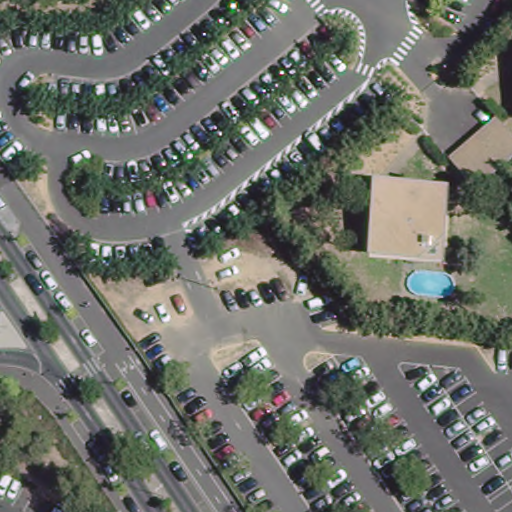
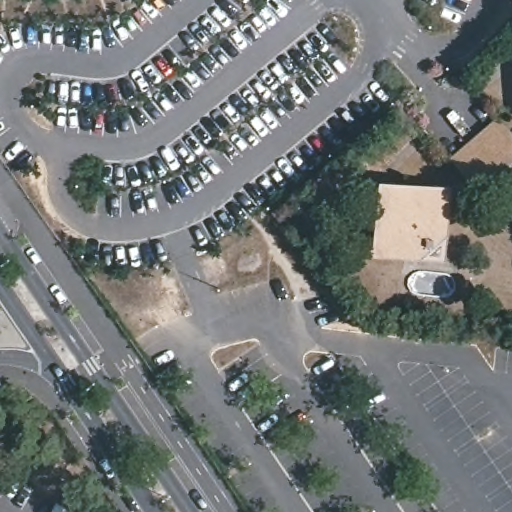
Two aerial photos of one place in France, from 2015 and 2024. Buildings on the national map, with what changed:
unchanged [(498,118),(512,135),(512,162),(475,191),(449,158),(498,118)]
unchanged [(449,187),(444,260),(370,257),(374,185),(449,187)]

